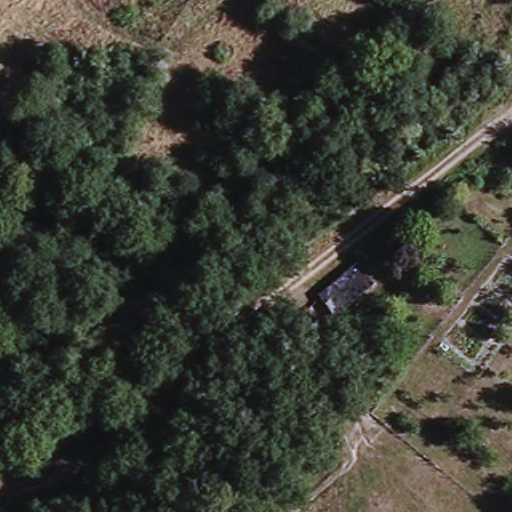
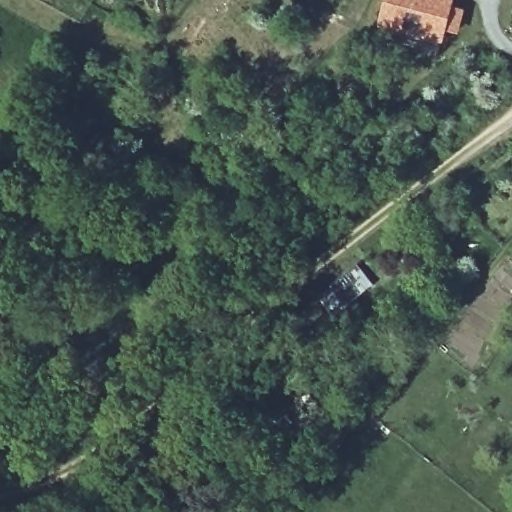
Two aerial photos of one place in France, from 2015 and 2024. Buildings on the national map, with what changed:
new [(451,6),(464,8),(459,33),(446,31),(444,45),(381,30),(385,0),(452,0),(451,6)]

